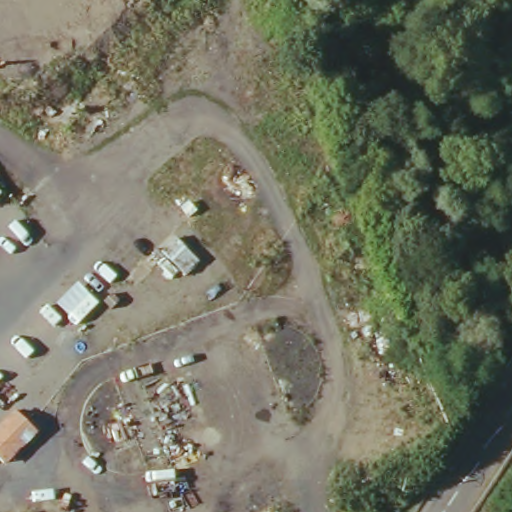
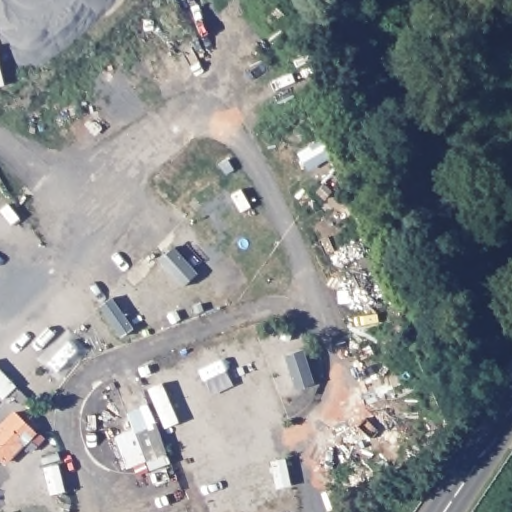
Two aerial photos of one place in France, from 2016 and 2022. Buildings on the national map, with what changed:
unchanged [(11,412),(31,434),(0,463),(0,424),(11,412)]

